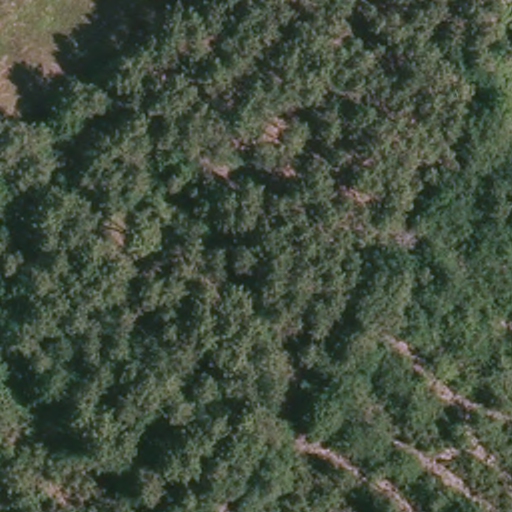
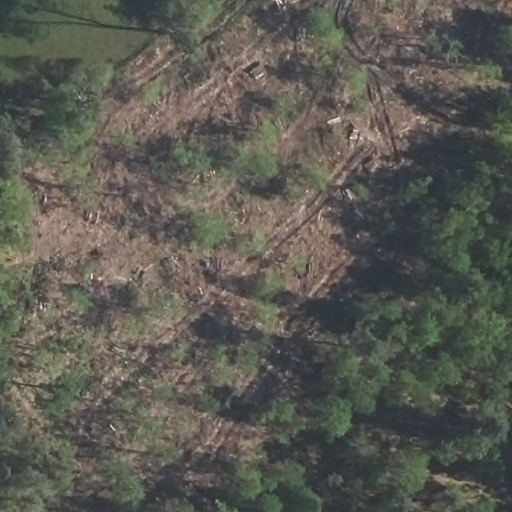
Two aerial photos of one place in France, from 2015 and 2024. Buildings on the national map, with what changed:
[]

